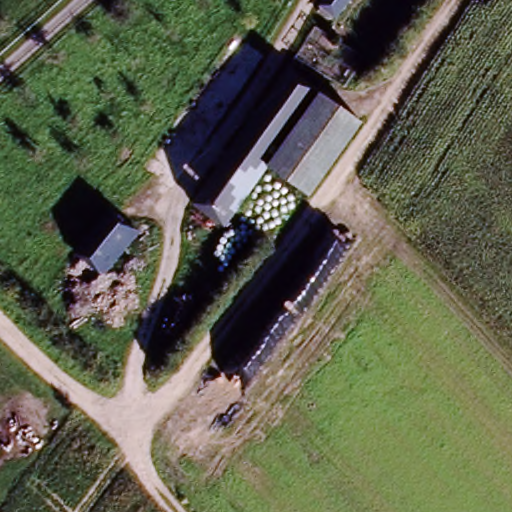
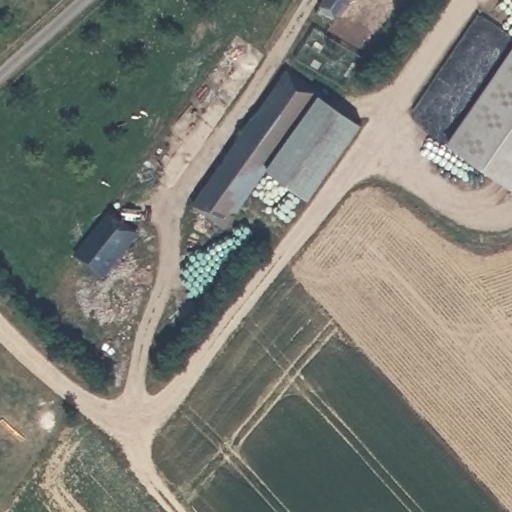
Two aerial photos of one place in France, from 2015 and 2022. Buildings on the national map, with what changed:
unchanged [(317,11),(325,0),(356,0),(336,26),(317,11)]
new [(448,144),(512,50),(512,188),(448,144)]
unchanged [(224,227),(191,204),(276,85),(288,67),(323,92),(321,94),(362,124),(336,160),(309,198),(308,199),(267,166),(236,211),(224,227)]
unchanged [(109,209),(140,233),(103,278),(73,254),(109,209)]

